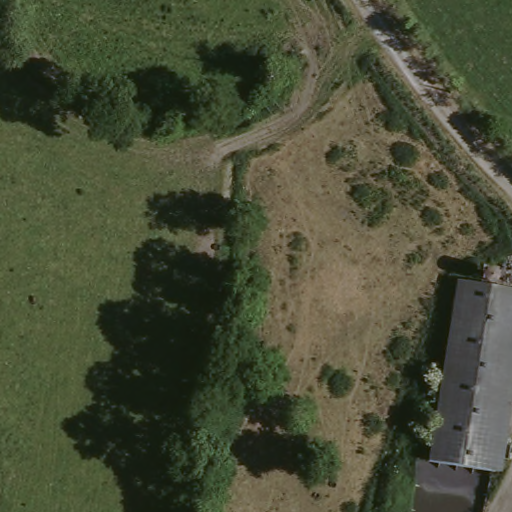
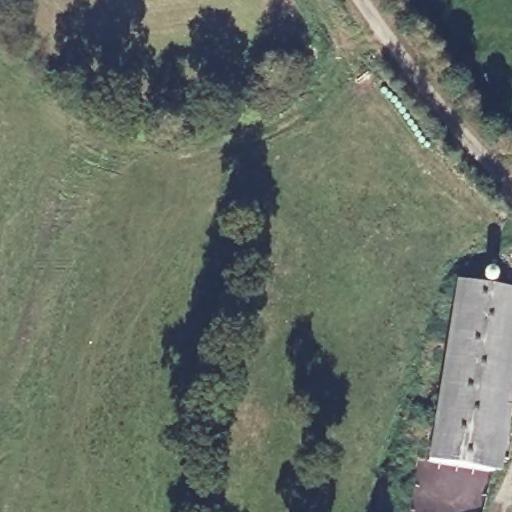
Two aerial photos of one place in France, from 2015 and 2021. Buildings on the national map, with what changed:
unchanged [(512,294),(512,422),(503,475),(431,463),(461,286),(512,294)]

